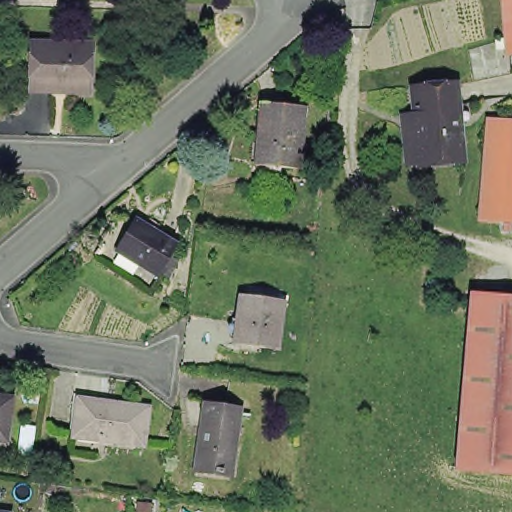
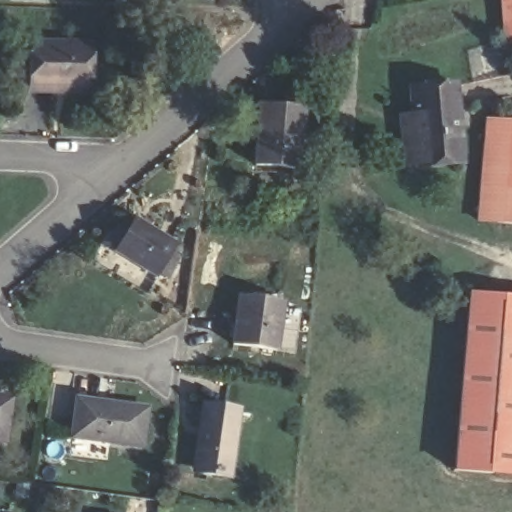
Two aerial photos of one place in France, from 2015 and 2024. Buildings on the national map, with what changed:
unchanged [(507,41),(502,0),(512,0),(512,60),(510,60),(507,41)]
unchanged [(95,41),(95,98),(26,96),(30,37),(95,41)]
unchanged [(469,168),(407,174),(403,115),(413,114),(411,87),(463,84),(469,168)]
unchanged [(306,172),(252,168),(258,106),(308,108),(306,172)]
unchanged [(512,123),(512,222),(485,221),(490,121),(512,123)]
unchanged [(177,240),(155,273),(116,246),(138,214),(177,240)]
unchanged [(237,295),(241,284),(289,288),(289,300),(282,351),(229,347),(237,295)]
unchanged [(512,297),(512,480),(453,477),(469,293),(512,297)]
unchanged [(11,432),(0,431),(0,394),(15,396),(11,432)]
unchanged [(234,485),(191,479),(201,401),(245,410),(234,485)]
unchanged [(148,450),(78,441),(83,404),(153,412),(148,450)]

